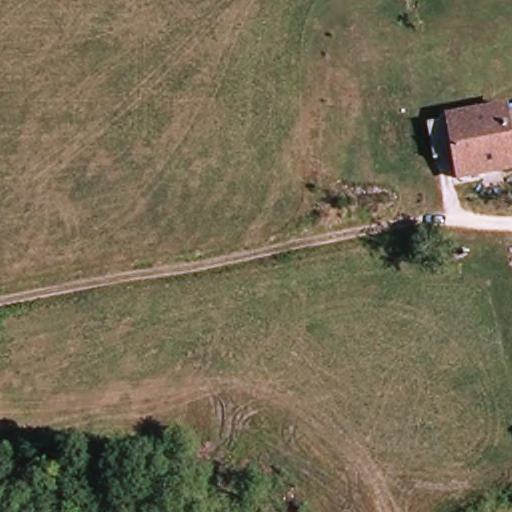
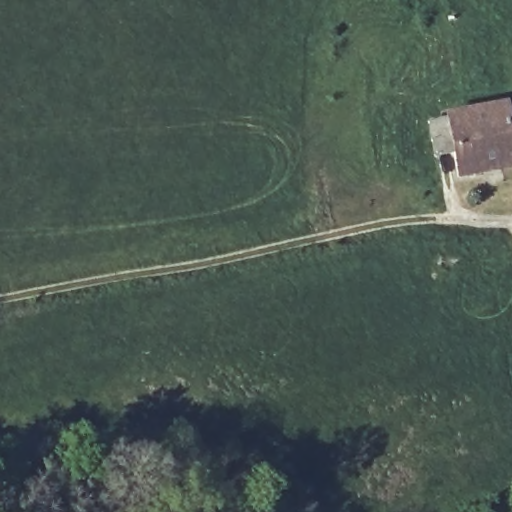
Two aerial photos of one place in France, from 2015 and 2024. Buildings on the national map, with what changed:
unchanged [(512,108),(512,171),(502,110),(512,108)]
unchanged [(512,175),(452,185),(441,120),(502,110),(512,171),(512,175)]

